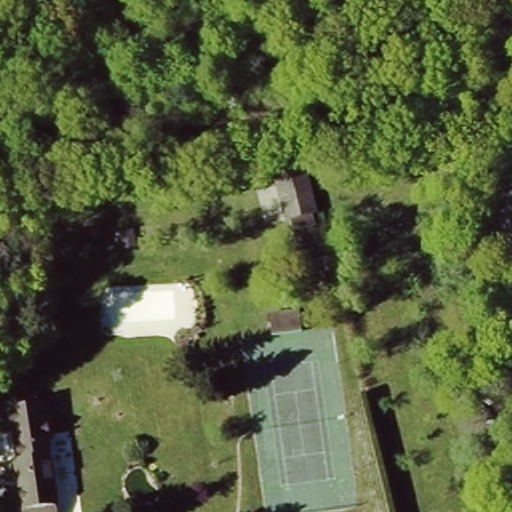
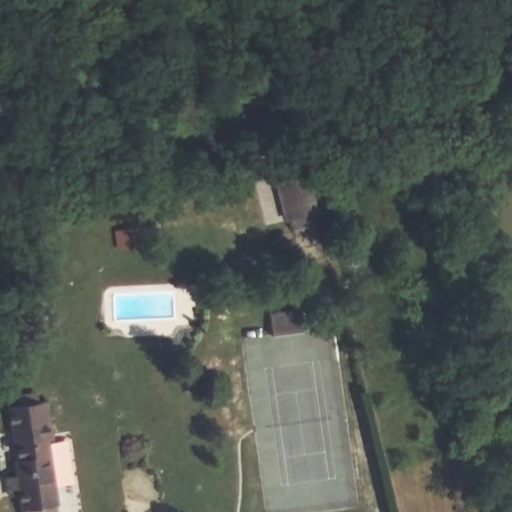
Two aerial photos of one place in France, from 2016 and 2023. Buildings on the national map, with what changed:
unchanged [(305,164),(320,225),(286,232),(271,172),(305,164)]
unchanged [(50,401),(60,505),(18,511),(10,406),(50,401)]

